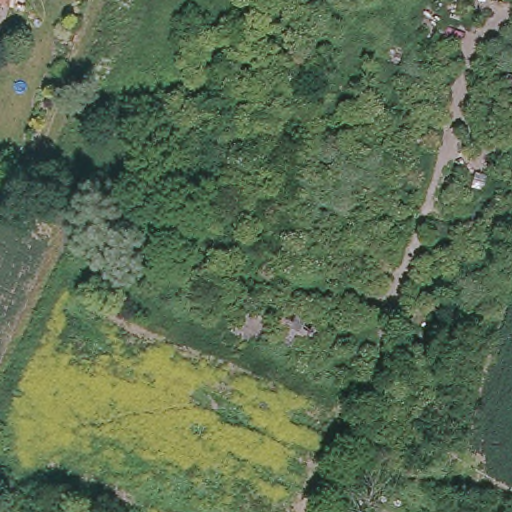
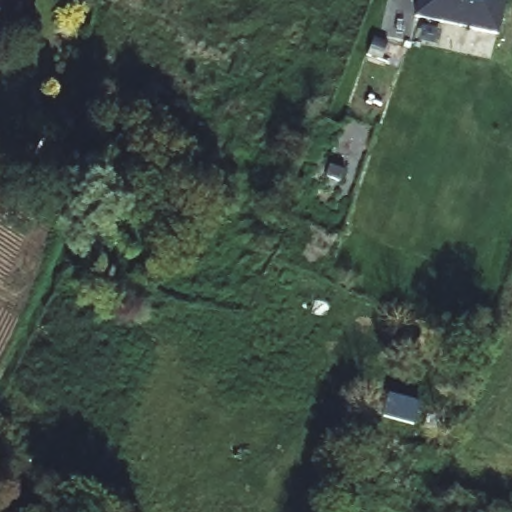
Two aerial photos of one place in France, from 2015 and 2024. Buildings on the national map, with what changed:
new [(417,0),(506,0),(499,36),(413,17),(417,0)]

